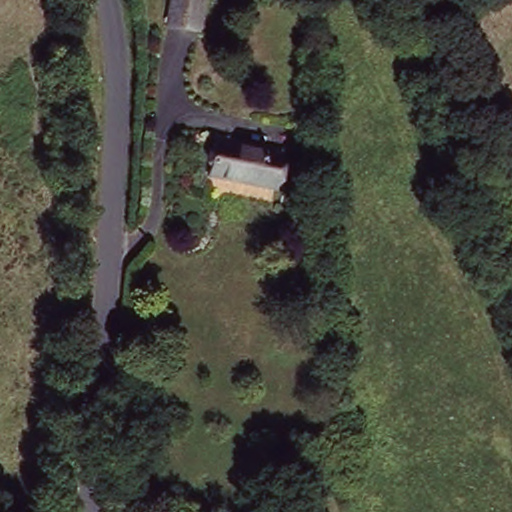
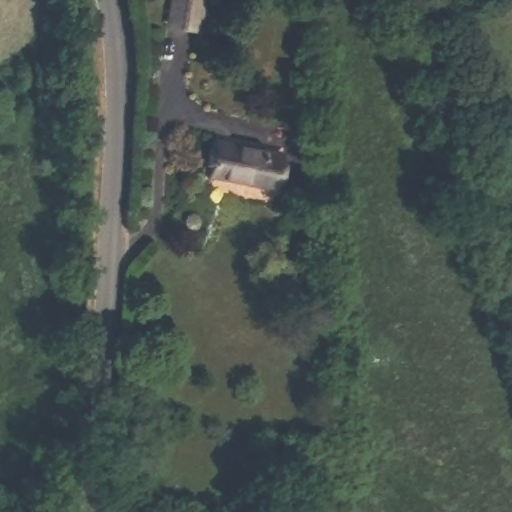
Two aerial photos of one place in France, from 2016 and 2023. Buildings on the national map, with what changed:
unchanged [(193,0),(189,26),(164,21),(167,0),(193,0)]
unchanged [(223,137),(285,149),(278,184),(216,173),(223,137)]

